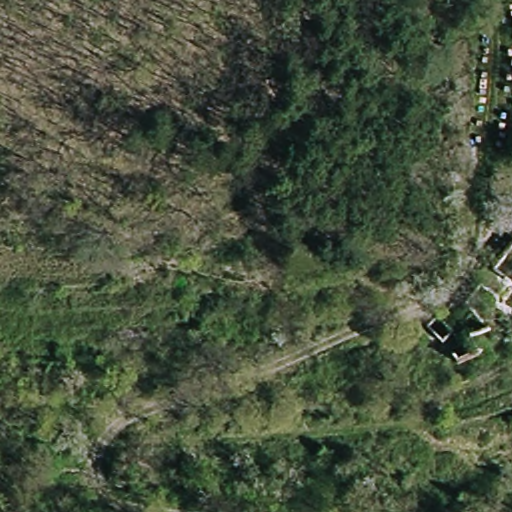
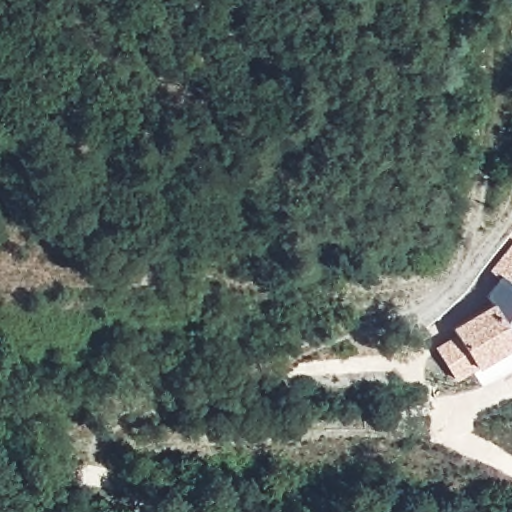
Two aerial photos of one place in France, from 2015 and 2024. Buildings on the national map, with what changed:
new [(512,242),(512,286),(490,270),(512,242)]
new [(450,326),(491,302),(512,337),(512,344),(454,379),(434,346),(455,334),(450,326)]

